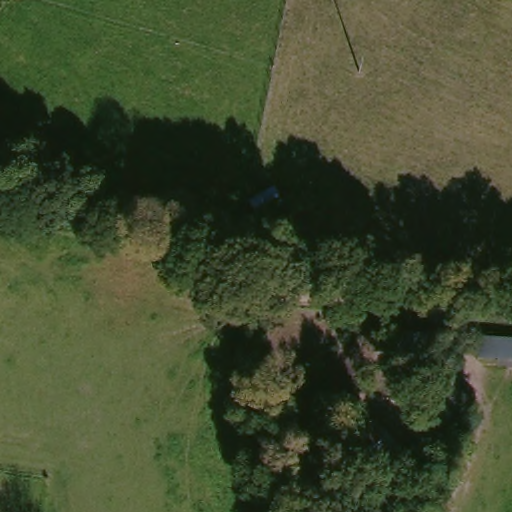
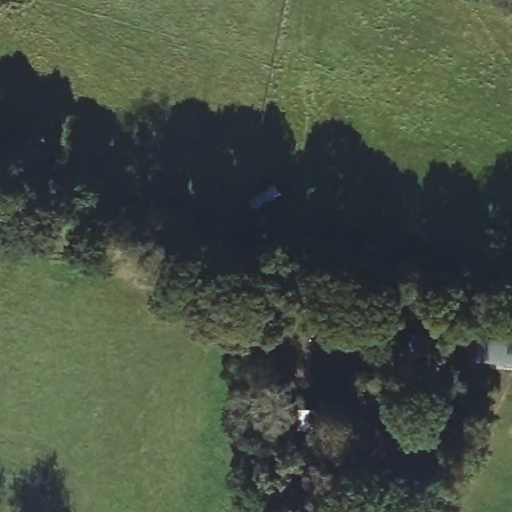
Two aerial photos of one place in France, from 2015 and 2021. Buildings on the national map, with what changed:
unchanged [(471,378),(467,345),(512,337),(512,370),(471,378)]

